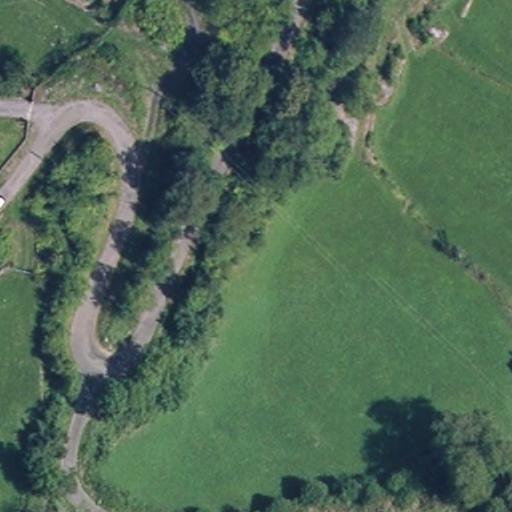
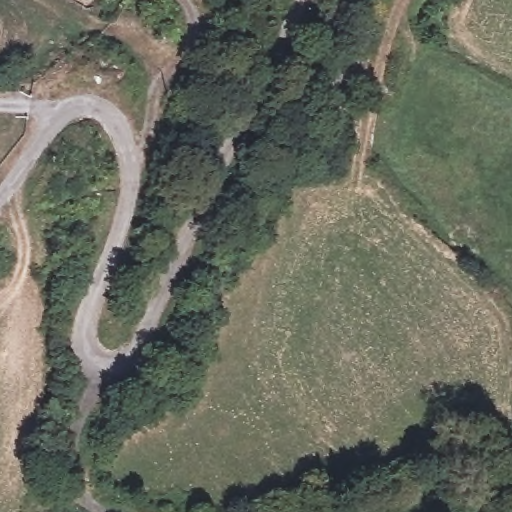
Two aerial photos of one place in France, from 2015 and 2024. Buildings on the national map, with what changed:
unchanged [(329,166),(330,183),(308,184),(306,166),(329,166)]

